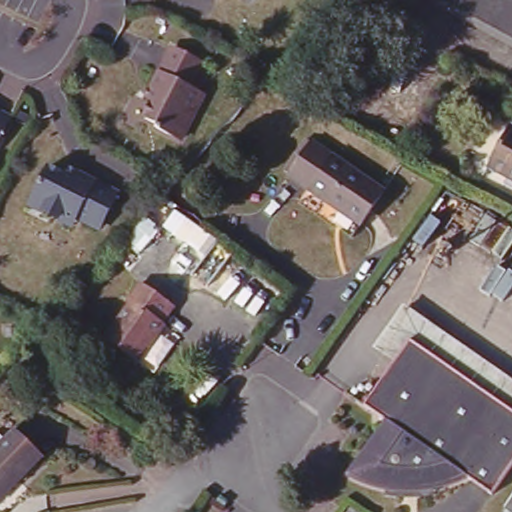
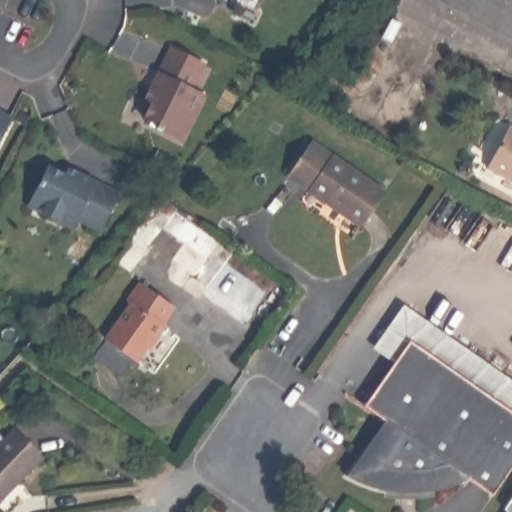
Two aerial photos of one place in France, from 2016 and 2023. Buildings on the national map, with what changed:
unchanged [(426,0),(512,0),(512,50),(426,0)]
unchanged [(207,65),(194,91),(205,99),(184,145),(143,120),(170,46),(207,65)]
unchanged [(0,133),(0,114),(8,117),(0,133)]
unchanged [(512,131),(512,185),(484,169),(508,129),(512,131)]
unchanged [(309,140),(381,195),(355,228),(283,174),(309,140)]
unchanged [(47,169),(70,180),(73,170),(116,191),(95,235),(26,202),(47,169)]
unchanged [(130,303),(141,288),(174,310),(162,325),(167,327),(154,345),(150,341),(134,362),(106,341),(132,305),(130,303)]
unchanged [(512,388),(512,414),(510,416),(409,344),(397,359),(381,348),(373,343),(402,309),(486,369),(512,388)]
unchanged [(370,431),(373,433),(381,422),(361,408),(397,359),(409,344),(510,416),(512,418),(512,463),(486,498),(461,480),(457,482),(449,486),(442,489),(435,490),(427,491),(418,492),(411,493),(405,493),(397,492),(390,492),(382,490),(373,488),(363,483),(353,478),(340,470),(370,431)]
unchanged [(41,454),(4,505),(0,503),(0,442),(10,430),(41,454)]
unchanged [(512,488),(512,512),(500,512),(496,509),(512,488)]

